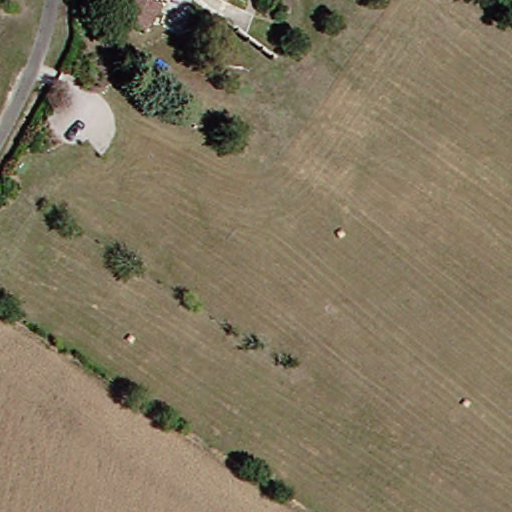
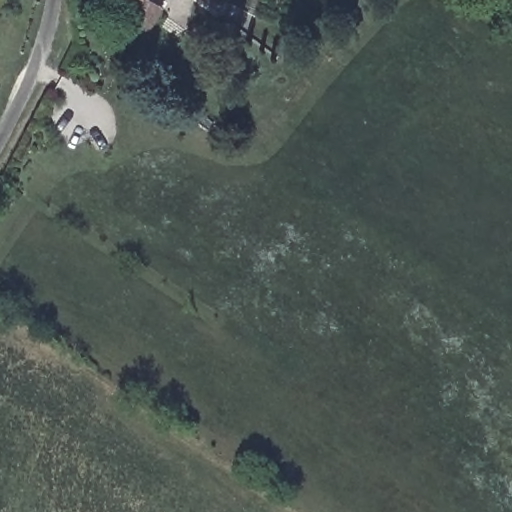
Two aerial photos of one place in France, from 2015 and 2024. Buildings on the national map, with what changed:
unchanged [(145,38),(119,22),(133,0),(154,0),(162,11),(145,38)]

